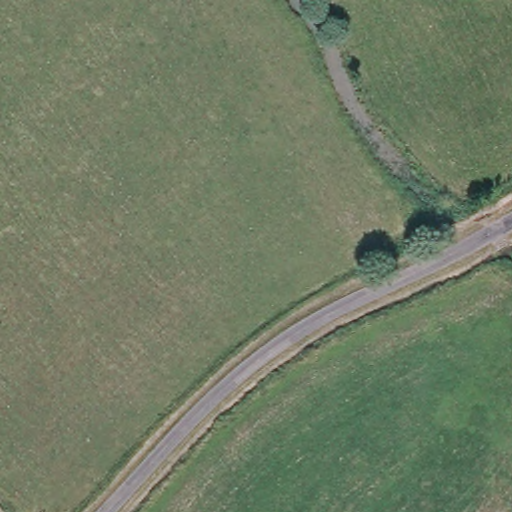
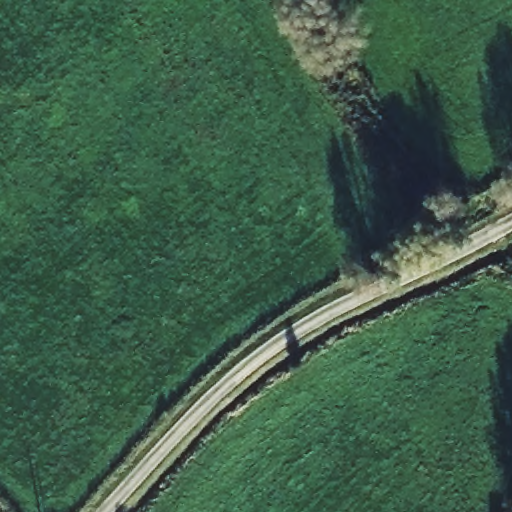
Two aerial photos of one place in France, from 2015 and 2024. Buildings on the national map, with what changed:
[]

